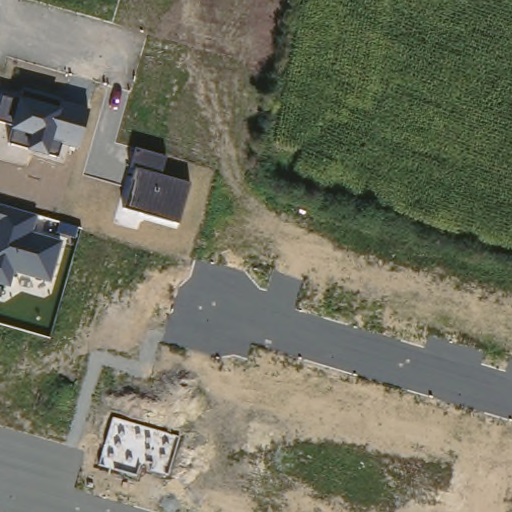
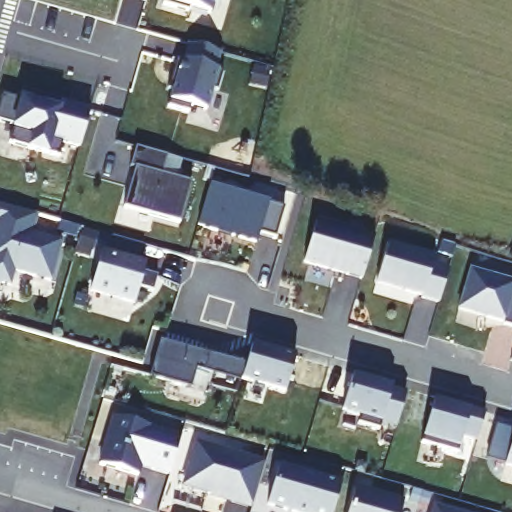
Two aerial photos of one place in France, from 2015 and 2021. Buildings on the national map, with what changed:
new [(215,0),(211,13),(190,8),(189,11),(164,4),(165,0),(215,0)]
new [(171,103),(168,101),(182,60),(185,61),(189,45),(221,54),(216,70),(223,73),(218,93),(212,91),(207,113),(191,108),(190,113),(169,106),(171,103)]
unchanged [(11,129),(12,125),(0,121),(0,103),(1,96),(17,100),(19,95),(21,90),(90,110),(79,149),(63,144),(59,158),(48,154),(47,157),(26,151),(27,148),(9,144),(11,129)]
unchanged [(135,170),(129,169),(135,148),(166,156),(162,174),(191,184),(178,224),(124,208),(135,170)]
new [(212,187),(287,208),(278,240),(261,235),(259,244),(200,227),(212,187)]
unchanged [(37,215),(32,234),(62,242),(50,283),(13,272),(9,288),(0,285),(0,204),(37,215)]
new [(315,221),(374,238),(361,280),(303,264),(315,221)]
unchanged [(104,250),(109,252),(114,235),(144,244),(140,260),(147,262),(145,271),(159,275),(155,291),(140,287),(136,302),(93,290),(104,250)]
new [(388,243),(434,255),(432,264),(448,269),(438,303),(421,298),(422,295),(376,283),(388,243)]
new [(512,280),(512,326),(502,324),(503,321),(457,308),(469,268),(512,280)]
new [(162,337),(213,351),(208,368),(199,366),(194,385),(152,373),(162,337)]
new [(255,344),(298,358),(289,392),(245,379),(255,344)]
new [(355,373),(393,384),(380,429),(358,423),(361,415),(343,410),(355,373)]
new [(435,399),(486,414),(477,443),(463,438),(458,455),(422,444),(435,399)]
new [(117,413),(185,432),(173,471),(155,466),(156,460),(150,458),(145,462),(141,472),(103,461),(117,413)]
new [(512,431),(512,467),(505,464),(486,459),(489,449),(496,426),(512,431)]
new [(200,438),(268,458),(255,503),(236,497),(236,496),(187,481),(200,438)]
new [(280,463),(343,481),(334,512),(302,512),(269,503),(280,463)]
new [(360,486),(408,501),(405,512),(353,512),(360,486)]
new [(432,505),(456,512),(430,512),(432,505)]

